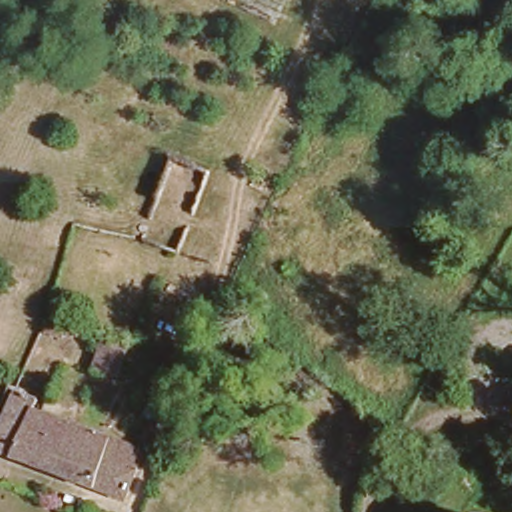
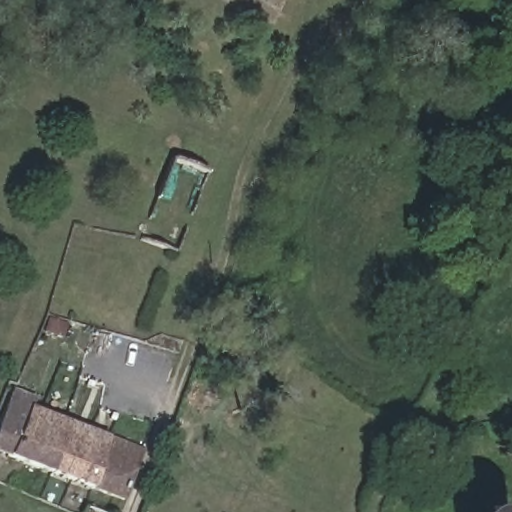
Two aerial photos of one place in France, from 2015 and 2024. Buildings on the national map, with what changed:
unchanged [(116,380),(94,372),(100,355),(96,353),(100,340),(126,348),(116,380)]
unchanged [(146,396),(155,373),(167,378),(158,401),(152,417),(134,410),(140,394),(146,396)]
unchanged [(0,452),(0,411),(8,390),(18,393),(29,398),(26,406),(8,455),(0,452)]
unchanged [(33,409),(66,421),(68,422),(50,470),(8,455),(26,406),(33,409)]
unchanged [(105,435),(108,437),(93,478),(91,485),(50,470),(68,422),(105,435)]
unchanged [(93,478),(108,437),(130,445),(133,437),(141,440),(120,495),(91,485),(93,478)]
unchanged [(105,512),(81,512),(84,503),(105,512)]

